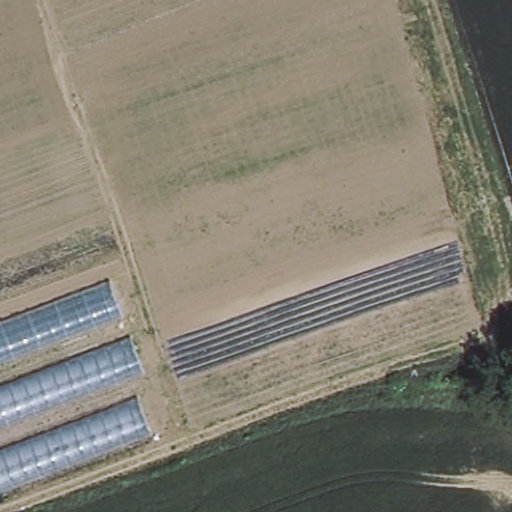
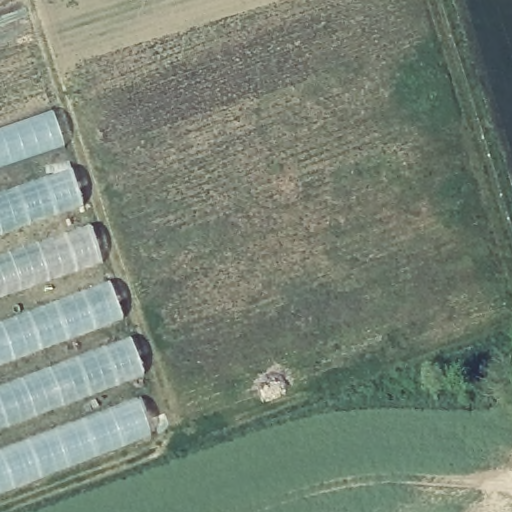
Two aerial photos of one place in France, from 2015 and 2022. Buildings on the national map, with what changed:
new [(56,118),(103,259),(0,295),(0,136),(56,118)]
unchanged [(110,284),(143,373),(129,378),(151,433),(0,489),(0,325),(110,284)]

